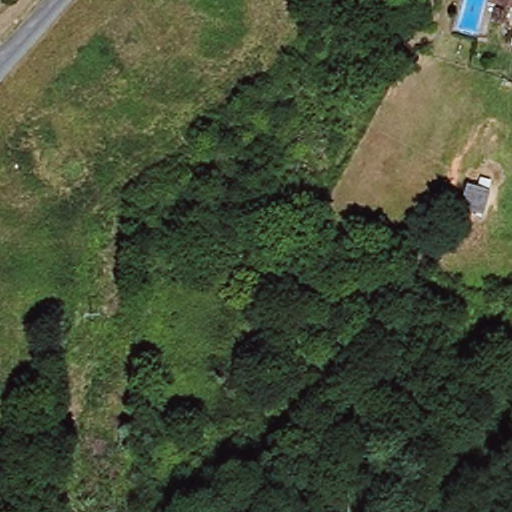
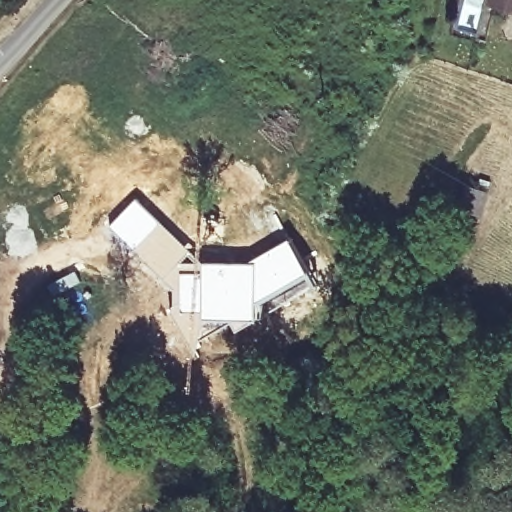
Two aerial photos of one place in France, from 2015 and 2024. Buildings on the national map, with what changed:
unchanged [(495,0),(512,0),(512,10),(494,5),(495,0)]
unchanged [(460,205),(467,185),(487,191),(481,211),(460,205)]
new [(136,196),(162,221),(133,250),(109,225),(136,196)]
new [(162,221),(190,250),(162,279),(133,250),(162,221)]
new [(185,262),(200,260),(251,258),(291,235),(312,271),(297,282),(299,285),(262,304),(262,318),(238,331),(232,319),(227,322),(226,319),(202,318),(202,310),(182,310),(180,265),(185,265),(185,262)]

